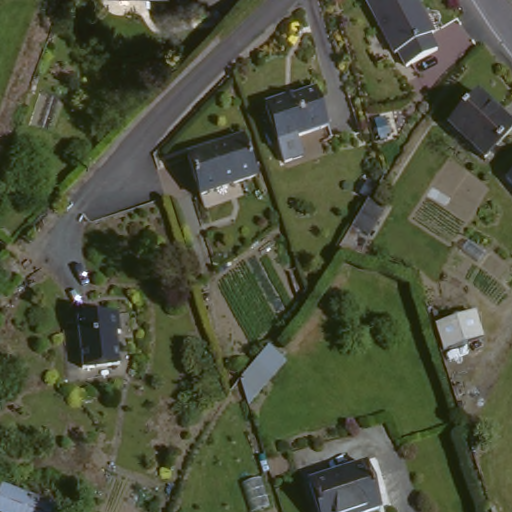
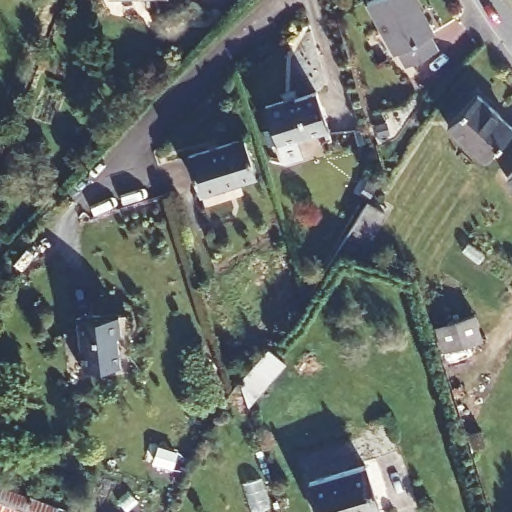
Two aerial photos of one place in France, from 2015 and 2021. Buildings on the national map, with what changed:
unchanged [(434,30),(443,43),(414,64),(405,51),(402,53),(368,5),(375,0),(418,0),(438,27),(434,30)]
unchanged [(331,129),(299,139),(306,157),(287,164),(281,145),(267,105),(288,98),(289,102),(318,92),(331,129)]
unchanged [(512,124),(512,131),(487,159),(449,125),(479,94),(512,124)]
unchanged [(191,156),(247,138),(260,179),(204,195),(191,156)]
unchanged [(512,180),(508,176),(512,172),(512,180)]
unchanged [(369,202),(386,212),(371,237),(353,227),(369,202)]
unchanged [(120,312),(123,330),(117,332),(121,363),(84,368),(78,318),(120,312)]
unchanged [(442,349),(434,325),(473,312),(481,337),(442,349)]
unchanged [(287,363),(249,408),(241,383),(272,346),(287,363)]
unchanged [(484,430),(488,446),(472,451),(467,435),(484,430)]
unchanged [(319,512),(310,483),(366,465),(381,511),(376,512),(319,512)]
unchanged [(0,512),(0,484),(55,505),(64,508),(63,512),(0,512)]

